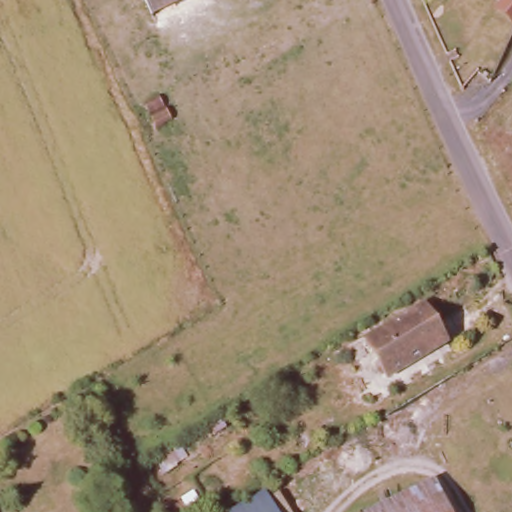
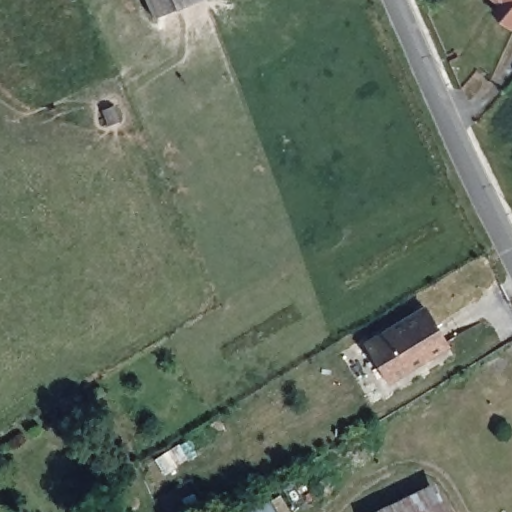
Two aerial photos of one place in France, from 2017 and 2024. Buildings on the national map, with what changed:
unchanged [(153,9),(149,0),(174,0),(153,9)]
unchanged [(509,27),(493,10),(499,5),(492,0),(512,0),(512,23),(509,27)]
unchanged [(448,338),(388,372),(366,337),(427,300),(448,338)]
unchanged [(374,512),(434,483),(447,512),(374,512)]
unchanged [(230,512),(266,490),(280,512),(230,512)]

